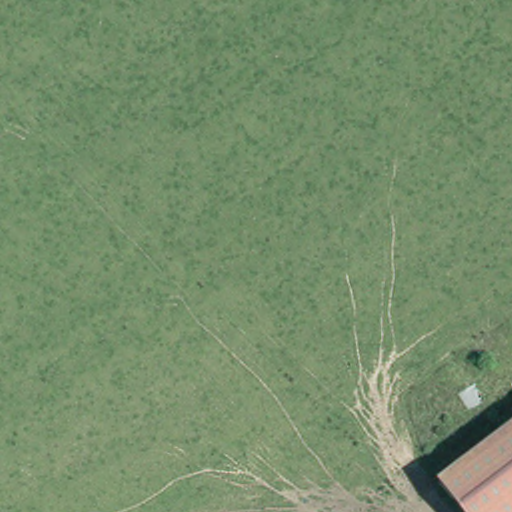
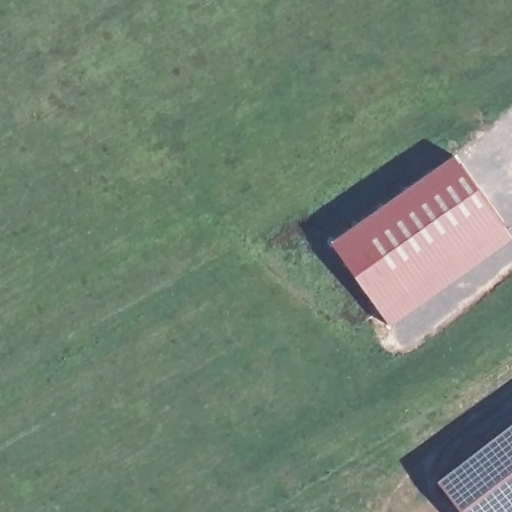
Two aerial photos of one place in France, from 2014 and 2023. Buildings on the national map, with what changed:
new [(454,155),(503,223),(380,309),(332,241),(454,155)]
new [(503,223),(512,236),(512,240),(392,325),(380,309),(503,223)]
unchanged [(512,423),(512,512),(464,512),(464,511),(444,472),(512,423)]

